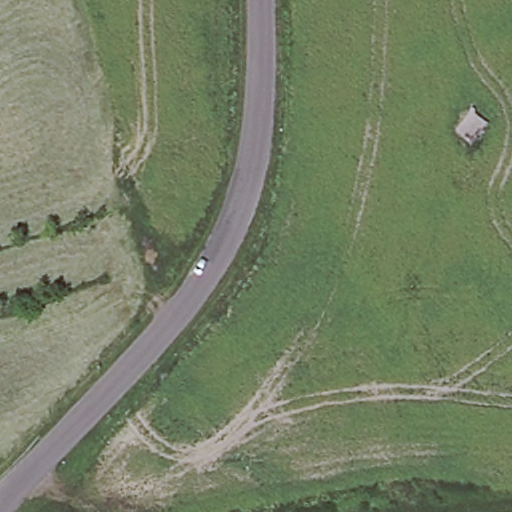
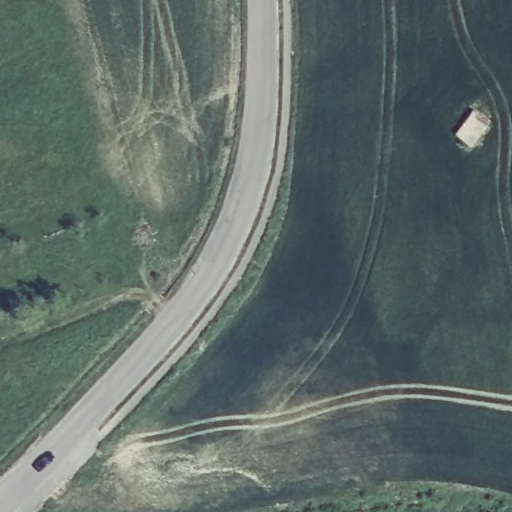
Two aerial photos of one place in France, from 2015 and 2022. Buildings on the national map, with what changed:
unchanged [(444,129),(470,102),(492,123),(467,149),(444,129)]

